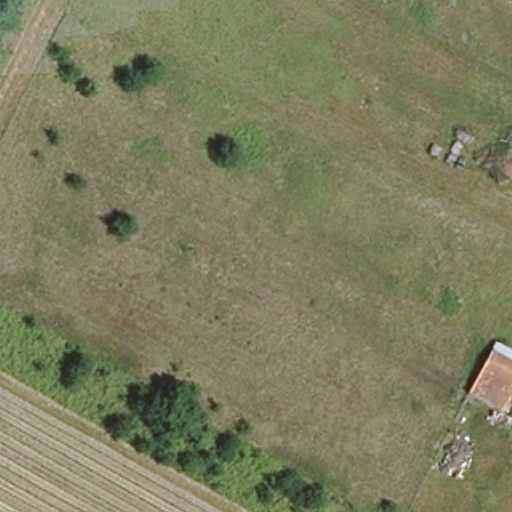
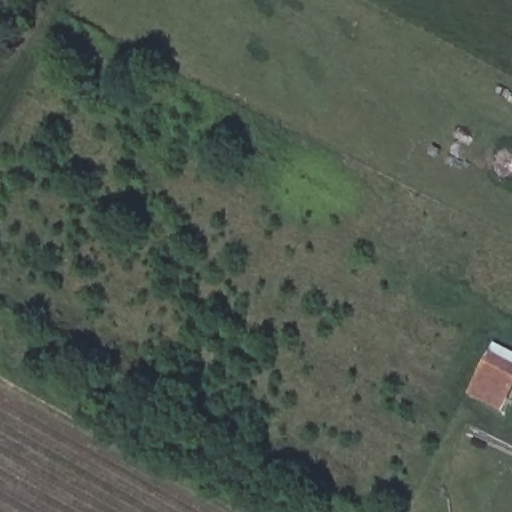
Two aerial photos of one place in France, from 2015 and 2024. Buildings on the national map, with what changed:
unchanged [(467,394),(497,341),(512,350),(512,394),(502,414),(467,394)]

